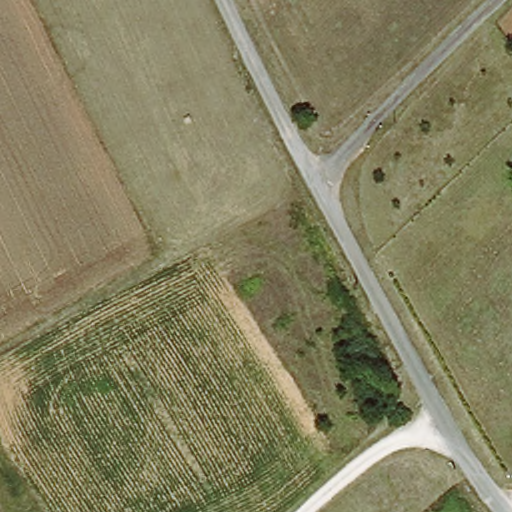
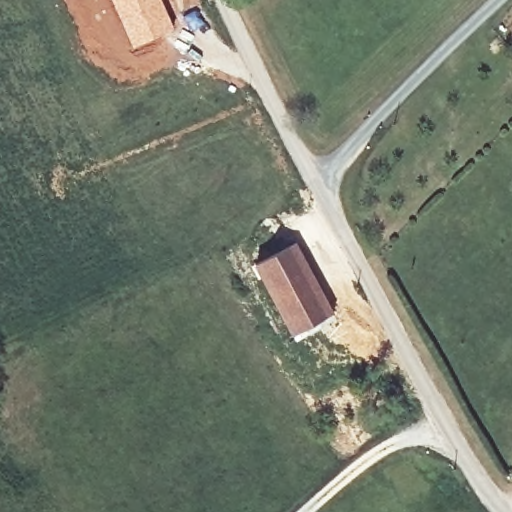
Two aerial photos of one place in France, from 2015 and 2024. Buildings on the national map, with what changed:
new [(175,29),(134,47),(113,0),(163,0),(175,29)]
new [(297,240),(335,315),(292,336),(253,265),(297,240)]

